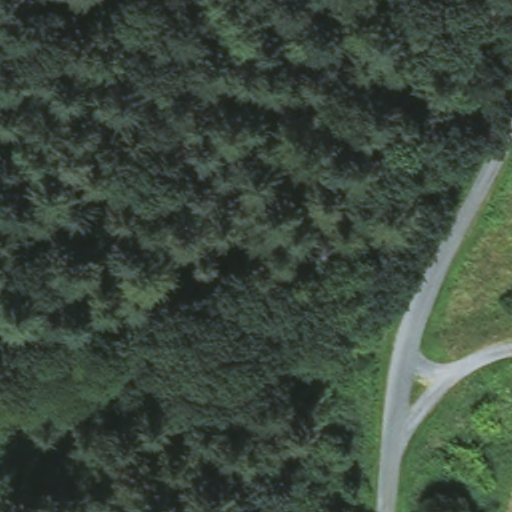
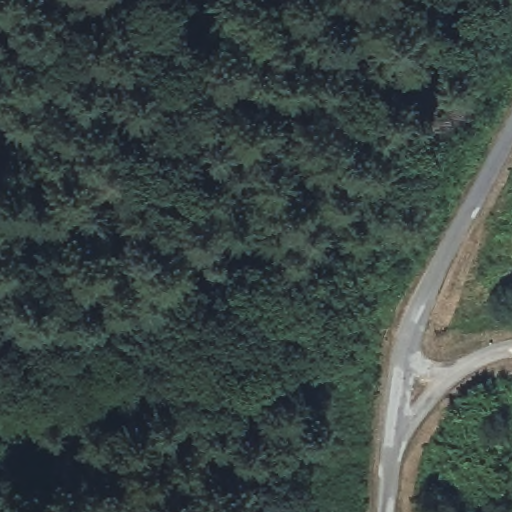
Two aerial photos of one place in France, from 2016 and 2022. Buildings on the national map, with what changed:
[]

